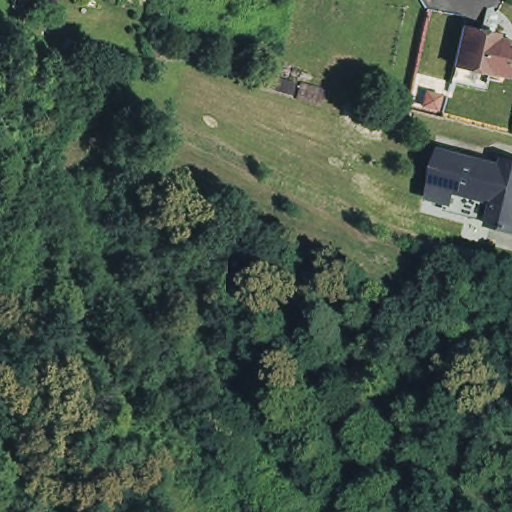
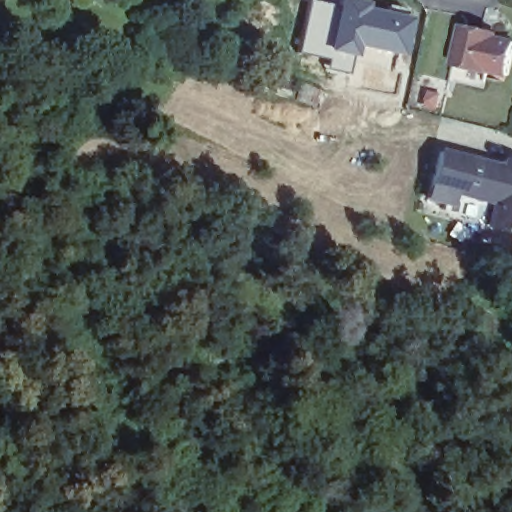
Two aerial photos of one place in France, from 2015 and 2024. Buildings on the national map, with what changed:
new [(315,0),(335,3),(335,0),(366,0),(368,0),(367,7),(408,14),(399,55),(357,46),(354,57),(351,56),(347,73),(325,69),(327,59),(298,51),(309,0),(315,0)]
unchanged [(459,66),(468,25),(490,30),(502,34),(501,38),(512,41),(512,77),(492,73),(489,87),(456,80),(459,66)]
unchanged [(445,193),(428,188),(431,176),(440,142),(502,159),(503,152),(512,155),(512,223),(486,216),(487,212),(492,192),(477,188),(472,208),(443,201),(445,193)]

